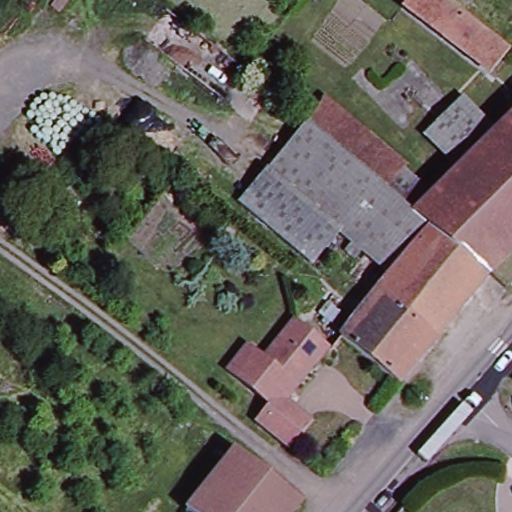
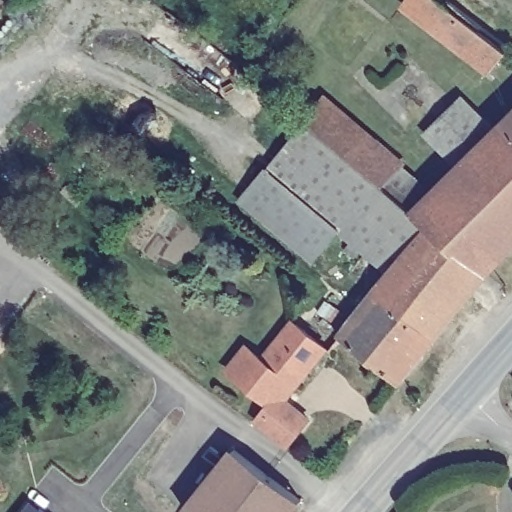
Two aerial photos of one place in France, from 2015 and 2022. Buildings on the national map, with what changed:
unchanged [(488,75),(402,9),(409,0),(437,0),(492,41),(507,53),(488,75)]
unchanged [(310,120),(326,96),(408,163),(387,184),(383,180),(310,120)]
unchanged [(490,271),(417,209),(455,170),(421,136),(463,98),(494,131),(505,119),(512,126),(512,249),(490,271)]
unchanged [(505,119),(512,112),(512,126),(505,119)]
unchanged [(417,209),(490,271),(402,380),(346,330),(395,270),(369,250),(342,230),(316,261),(242,200),(274,163),(310,120),(383,180),(387,184),(417,209)]
unchanged [(292,320),(326,345),(306,372),(273,347),(292,320)]
unchanged [(273,402),(262,394),(229,370),(247,346),(265,359),(273,347),(306,372),(287,397),(312,417),(291,443),(260,419),(273,402)]
unchanged [(295,504),(288,512),(180,512),(178,510),(226,450),(295,504)]

